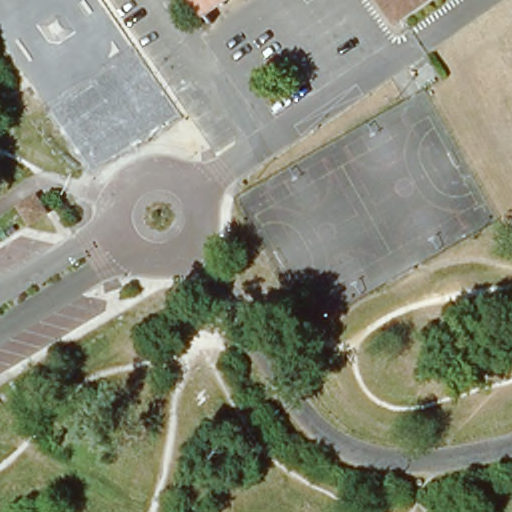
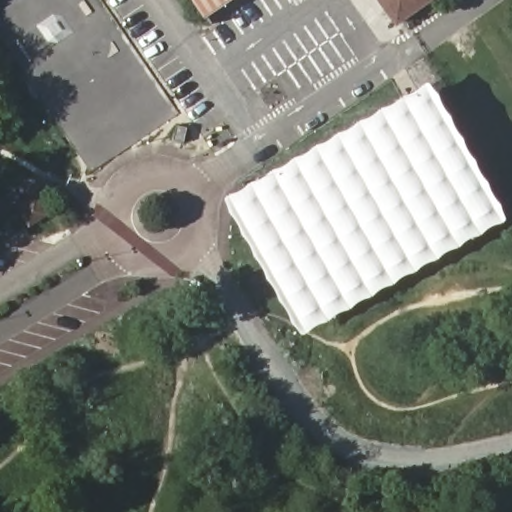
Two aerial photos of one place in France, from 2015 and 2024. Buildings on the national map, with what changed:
unchanged [(189,0),(228,0),(201,18),(189,0)]
unchanged [(377,0),(431,0),(396,25),(377,0)]
new [(503,218),(303,332),(229,203),(430,88),(503,218)]
unchanged [(25,229),(11,206),(34,193),(49,215),(25,229)]

